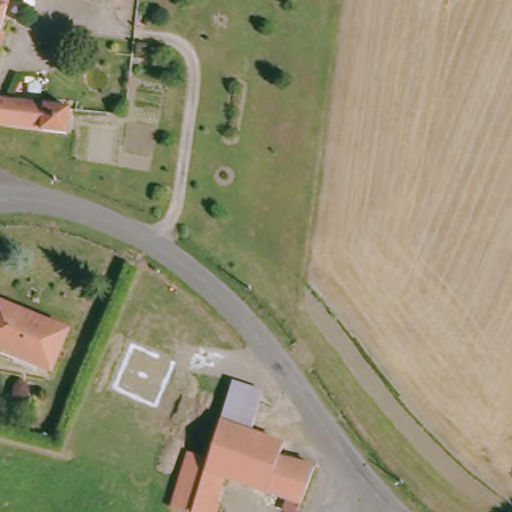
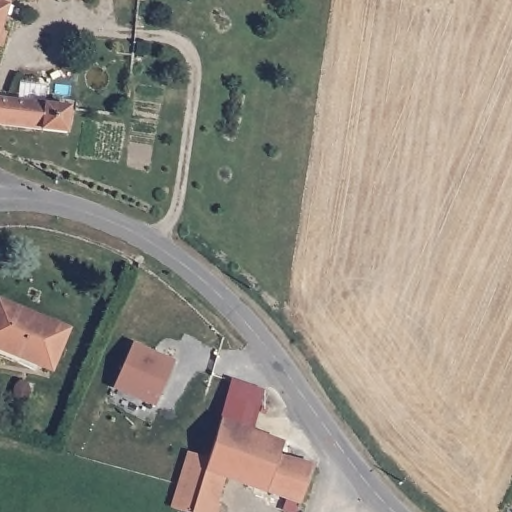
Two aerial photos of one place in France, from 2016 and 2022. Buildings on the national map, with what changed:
unchanged [(0,120),(0,94),(70,102),(67,128),(0,120)]
unchanged [(47,365),(12,351),(10,356),(0,353),(0,299),(64,325),(47,365)]
new [(114,390),(134,344),(175,362),(155,407),(114,390)]
unchanged [(222,380),(254,390),(241,432),(274,445),(269,457),(305,466),(288,512),(279,512),(273,510),(277,498),(216,477),(204,503),(208,505),(206,512),(176,512),(162,508),(180,452),(200,458),(222,380)]

